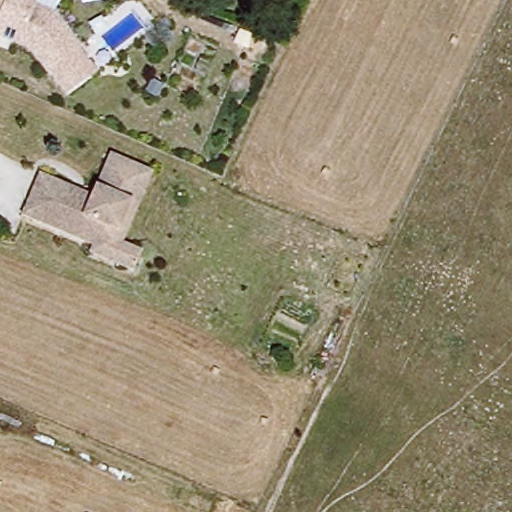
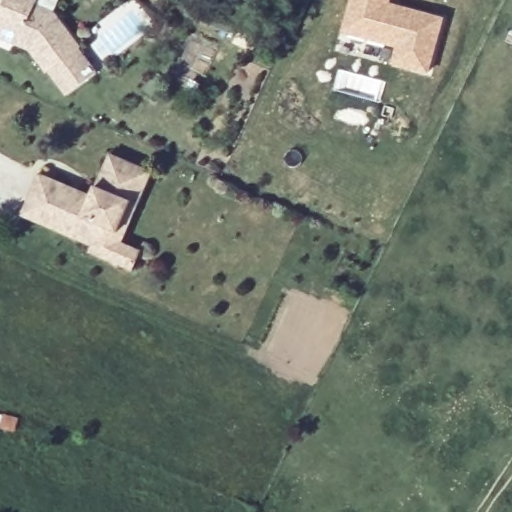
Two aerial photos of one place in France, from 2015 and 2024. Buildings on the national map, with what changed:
unchanged [(55,9),(80,44),(47,69),(31,44),(0,31),(0,0),(35,0),(35,1),(55,9)]
new [(342,32),(352,0),(391,0),(390,5),(445,17),(431,72),(395,65),(399,47),(342,32)]
unchanged [(80,44),(100,72),(67,95),(47,69),(80,44)]
unchanged [(135,180),(109,238),(92,232),(87,245),(16,212),(35,170),(63,182),(87,192),(104,152),(106,149),(127,159),(126,162),(121,173),(135,180)]
unchanged [(117,240),(137,247),(127,268),(85,251),(87,245),(92,232),(109,238),(135,180),(121,173),(126,162),(127,159),(149,168),(147,174),(117,240)]

